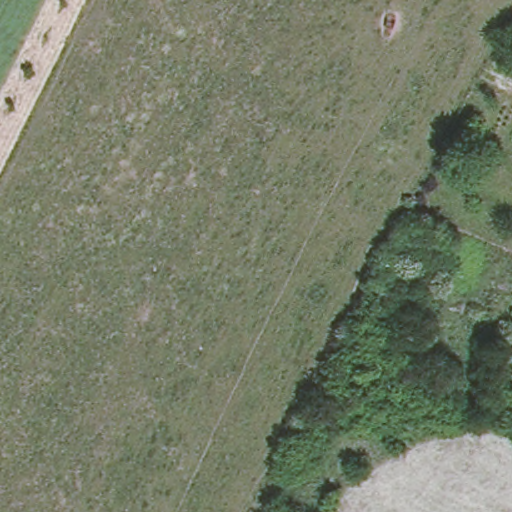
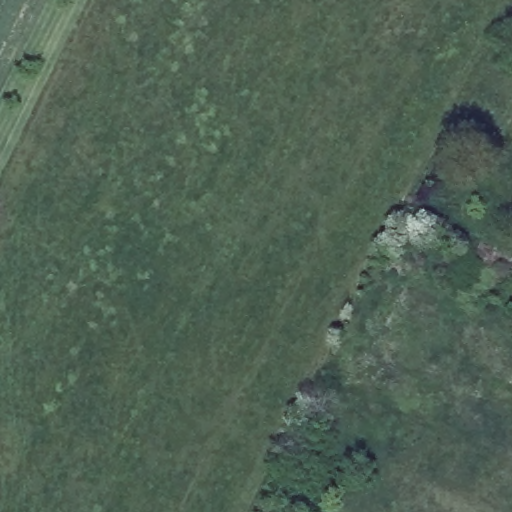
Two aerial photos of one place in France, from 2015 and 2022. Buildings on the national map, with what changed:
[]

